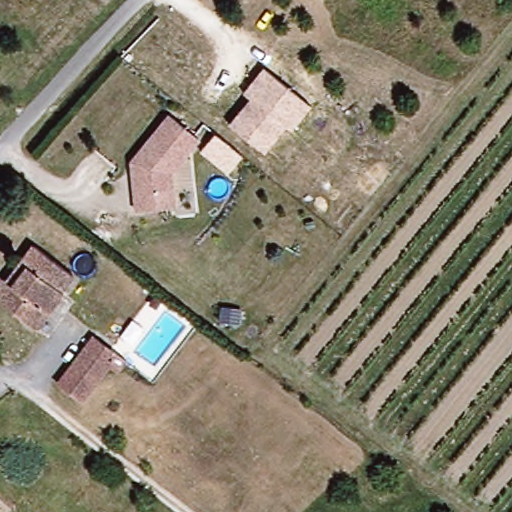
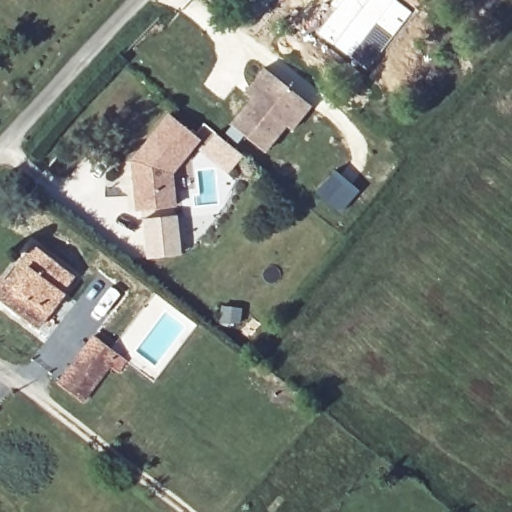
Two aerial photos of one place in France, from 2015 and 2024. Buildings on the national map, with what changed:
new [(398,0),(413,11),(368,72),(314,34),(336,0),(398,0)]
unchanged [(312,105),(292,131),(286,126),(264,154),(228,124),(248,99),(242,94),(262,68),(312,105)]
unchanged [(195,139),(167,173),(171,207),(132,211),(126,160),(165,114),(195,139)]
new [(211,134),(238,156),(225,172),(198,149),(211,134)]
new [(182,254),(146,258),(142,218),(174,214),(182,254)]
unchanged [(32,325),(0,298),(0,286),(7,278),(14,283),(28,268),(20,261),(33,246),(71,278),(32,325)]
unchanged [(56,382),(86,346),(97,333),(125,357),(119,365),(113,359),(109,364),(77,401),(56,382)]

